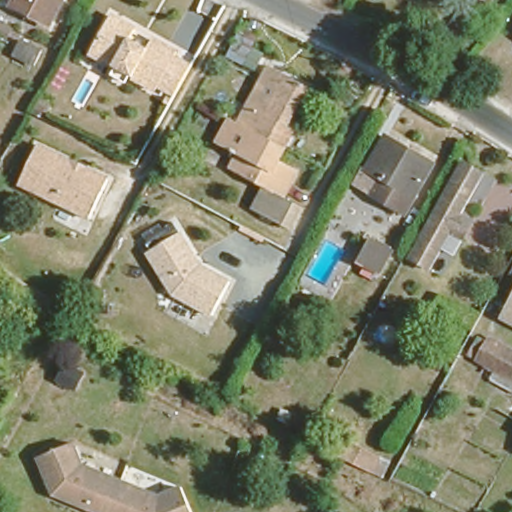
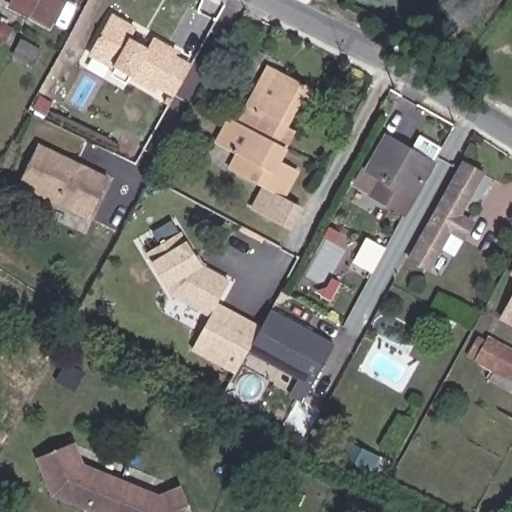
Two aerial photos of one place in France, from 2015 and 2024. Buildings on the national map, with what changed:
unchanged [(6,1),(7,0),(61,0),(49,22),(6,1)]
new [(255,57),(243,50),(222,39),(238,10),(259,21),(251,34),(264,41),(255,57)]
unchanged [(109,78),(113,71),(86,56),(110,19),(134,33),(128,42),(146,53),(151,45),(175,59),(173,64),(188,72),(173,100),(155,92),(154,96),(128,80),(124,86),(109,78)]
unchanged [(3,45),(9,30),(28,39),(21,54),(3,45)]
unchanged [(215,146),(227,119),(234,121),(239,112),(250,92),(269,52),(309,74),(284,125),(279,134),(289,139),(278,160),(298,168),(284,197),(264,187),(244,177),(226,169),(233,154),(215,146)]
unchanged [(379,171),(368,166),(386,132),(434,157),(408,207),(389,199),(370,190),(379,171)]
unchanged [(19,184),(39,144),(110,181),(90,221),(19,184)]
unchanged [(468,217),(464,229),(450,224),(431,261),(409,251),(456,157),(478,168),(456,211),(468,217)]
unchanged [(284,197),(305,207),(295,229),(254,210),(264,187),(284,197)]
unchanged [(182,234),(202,263),(229,281),(218,304),(211,317),(172,298),(146,256),(182,234)]
unchanged [(359,266),(369,241),(392,251),(379,276),(359,266)]
unchanged [(502,314),(512,293),(512,318),(502,314)]
new [(211,317),(218,304),(261,327),(271,310),(333,343),(312,383),(249,351),(235,374),(193,352),(211,317)]
unchanged [(492,383),(495,373),(475,365),(484,343),(512,356),(512,392),(492,383)]
unchanged [(387,478),(337,459),(343,442),(391,462),(387,478)]
unchanged [(192,512),(95,512),(73,503),(74,500),(66,497),(65,501),(55,497),(38,462),(73,445),(84,467),(121,482),(159,496),(182,487),(192,512)]

